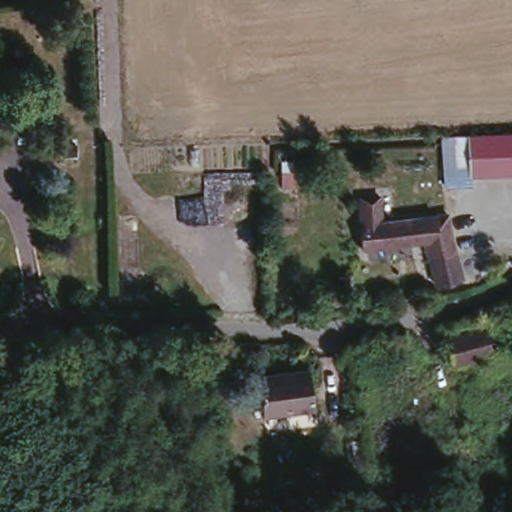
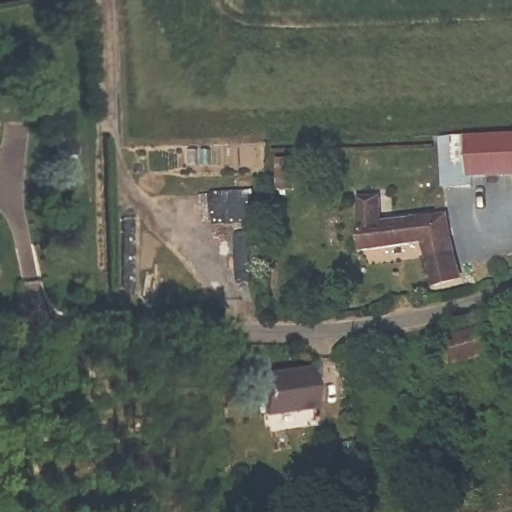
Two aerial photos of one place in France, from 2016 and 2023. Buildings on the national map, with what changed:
unchanged [(466,174),(465,168),(440,169),(440,136),(512,135),(512,173),(466,174)]
unchanged [(377,192),(380,219),(440,211),(450,249),(460,247),(468,274),(433,285),(421,245),(360,246),(357,193),(377,192)]
unchanged [(492,327),(501,352),(455,369),(443,343),(492,327)]
unchanged [(308,365),(316,402),(261,413),(252,377),(308,365)]
unchanged [(473,439),(481,463),(455,468),(451,443),(473,439)]

